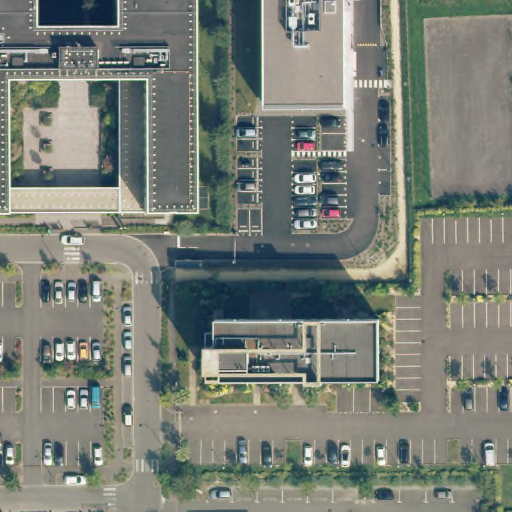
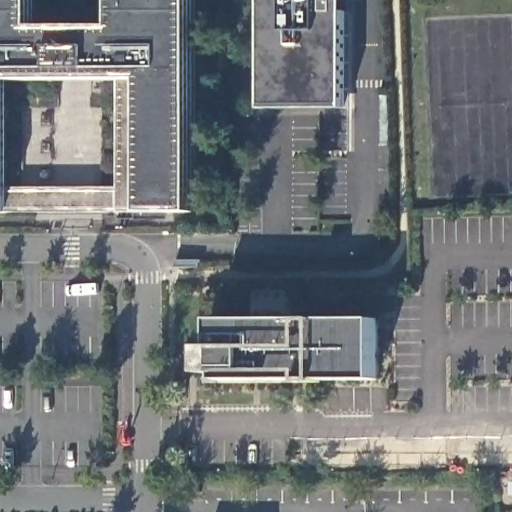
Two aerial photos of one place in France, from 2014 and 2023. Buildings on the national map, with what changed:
unchanged [(8,213),(0,213),(0,0),(35,0),(35,27),(115,26),(115,0),(194,0),(195,212),(119,212),(119,187),(118,80),(7,80),(7,187),(8,213)]
unchanged [(263,0),(343,0),(342,107),(263,108),(263,0)]
unchanged [(119,187),(119,212),(8,213),(7,187),(119,187)]
unchanged [(379,319),(379,380),(323,380),(323,384),(317,384),(306,380),(221,381),(221,347),(205,347),(205,333),(217,333),(217,320),(379,319)]

